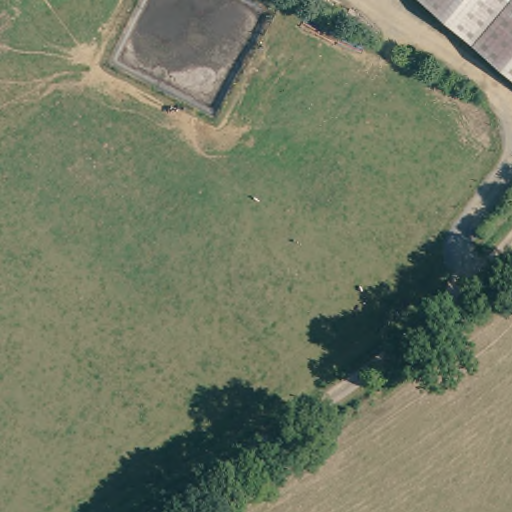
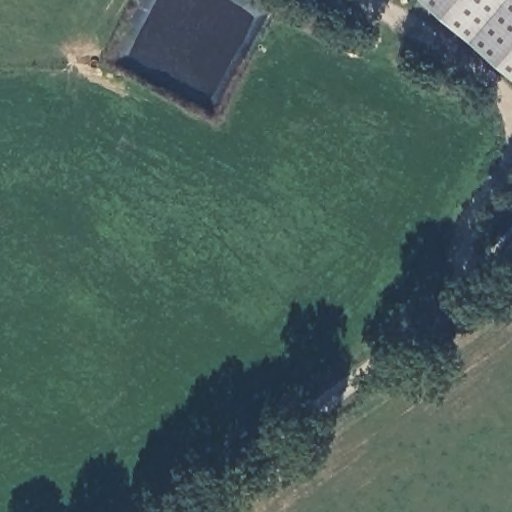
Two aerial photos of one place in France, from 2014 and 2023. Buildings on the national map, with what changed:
unchanged [(512,0),(512,76),(422,0),(512,0)]

